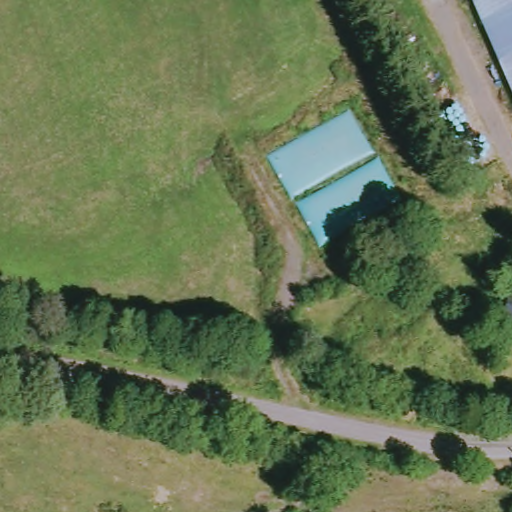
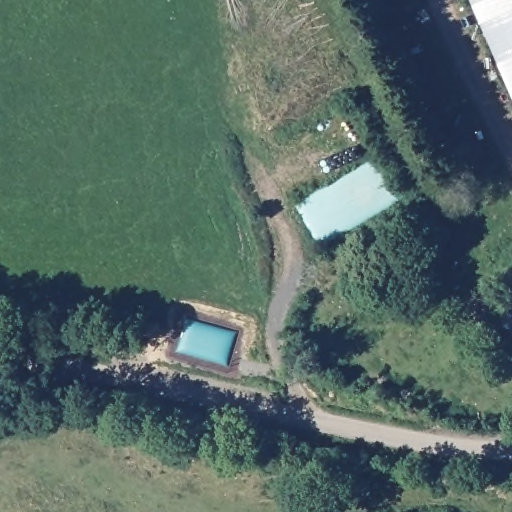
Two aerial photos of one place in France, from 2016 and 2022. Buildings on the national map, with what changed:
unchanged [(512,0),(512,80),(478,0),(512,0)]

